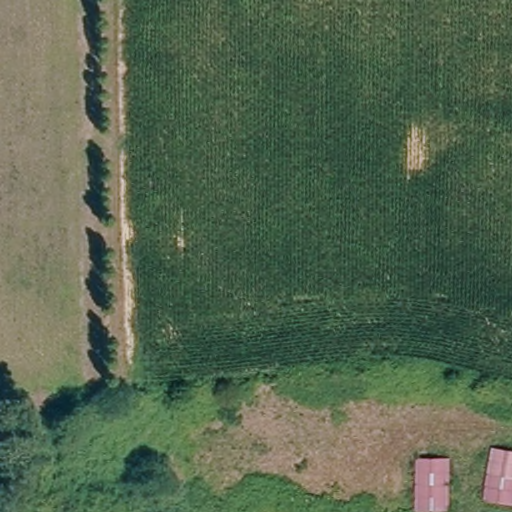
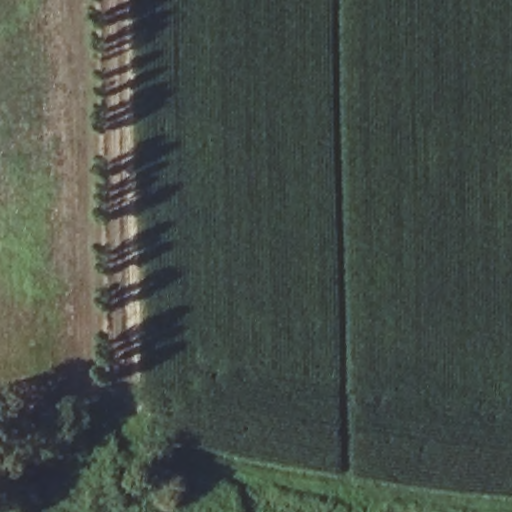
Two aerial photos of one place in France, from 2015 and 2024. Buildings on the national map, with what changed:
demolished [(491,450),(512,453),(512,505),(484,500),(491,450)]
demolished [(417,460),(450,459),(451,511),(417,512),(417,460)]

